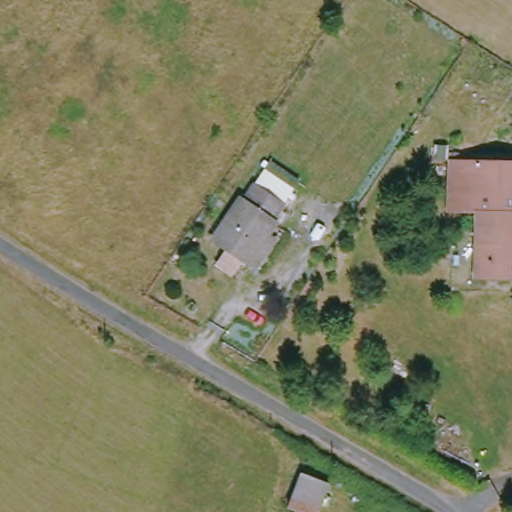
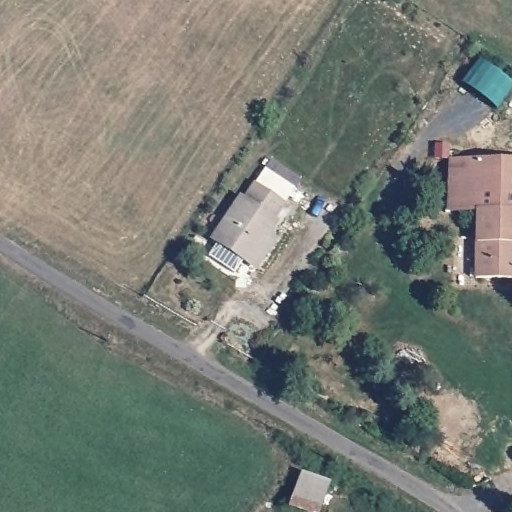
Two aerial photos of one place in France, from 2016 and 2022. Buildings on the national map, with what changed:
unchanged [(493,106),(457,80),(472,55),(510,81),(493,106)]
unchanged [(510,277),(475,277),(477,209),(450,210),(449,161),(512,160),(512,277),(510,277)]
unchanged [(287,195),(277,207),(249,187),(259,175),(287,195)]
unchanged [(212,230),(242,190),(281,220),(252,260),(212,230)]
unchanged [(316,512),(303,512),(288,504),(302,473),(329,486),(316,512)]

